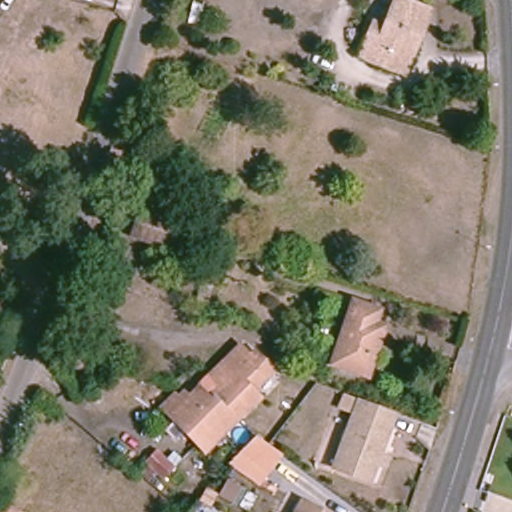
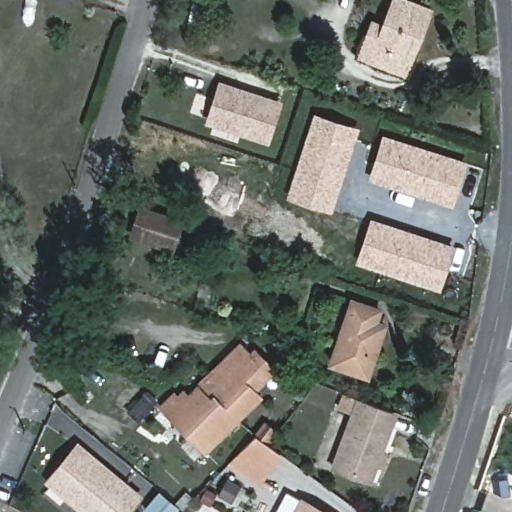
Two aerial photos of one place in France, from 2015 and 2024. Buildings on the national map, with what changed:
unchanged [(373,22),(383,27),(394,0),(407,0),(430,9),(409,62),(406,61),(400,75),(359,59),(373,22)]
new [(222,85),(280,104),(268,142),(210,122),(222,85)]
new [(287,197),(314,112),(360,127),(332,212),(287,197)]
new [(468,161),(453,207),(368,179),(383,134),(468,161)]
unchanged [(162,245),(132,234),(139,210),(170,220),(181,224),(171,247),(162,245)]
new [(456,245),(440,291),(356,263),(372,217),(456,245)]
unchanged [(352,303),(377,311),(373,322),(383,327),(367,375),(333,363),(352,303)]
unchanged [(160,407),(172,395),(176,400),(183,392),(189,397),(240,346),(248,353),(252,349),(272,370),(252,390),(259,397),(205,451),(160,407)]
unchanged [(387,420),(384,426),(387,427),(367,481),(331,467),(355,405),(357,399),(358,399),(390,412),(387,420)]
unchanged [(251,437),(266,448),(279,457),(267,473),(260,484),(232,465),(240,453),(251,437)]
new [(77,442),(142,497),(129,512),(80,512),(43,481),(77,442)]
unchanged [(323,512),(295,512),(302,501),(323,512)]
unchanged [(4,512),(8,505),(22,512),(4,512)]

